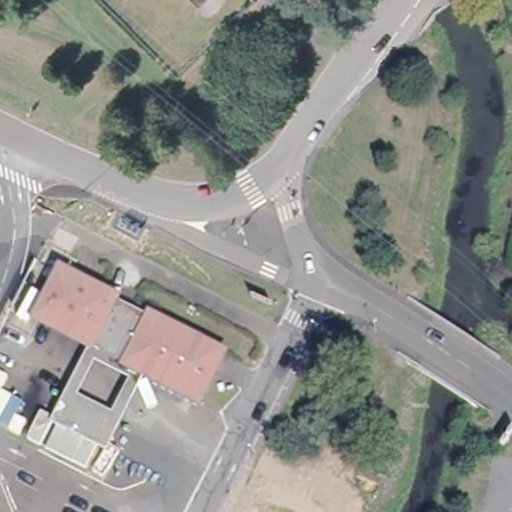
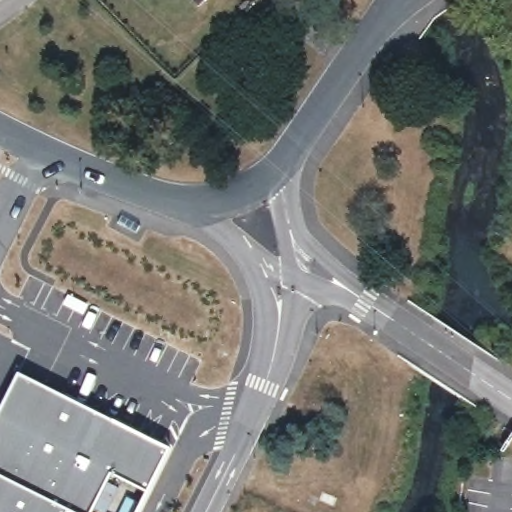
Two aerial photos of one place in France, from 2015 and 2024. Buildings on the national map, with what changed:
unchanged [(190,0),(197,0),(194,4),(190,0)]
demolished [(147,375),(91,348),(40,324),(65,274),(225,350),(200,401),(147,375)]
new [(171,447),(149,489),(114,473),(93,512),(68,512),(67,512),(0,512),(0,410),(20,371),(171,447)]
demolished [(142,477),(155,512),(126,512),(119,485),(142,477)]

